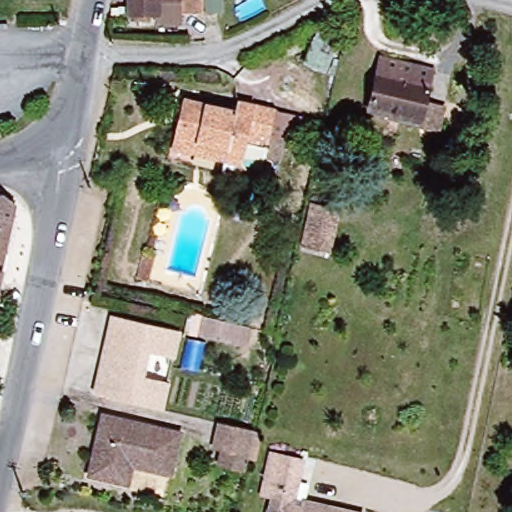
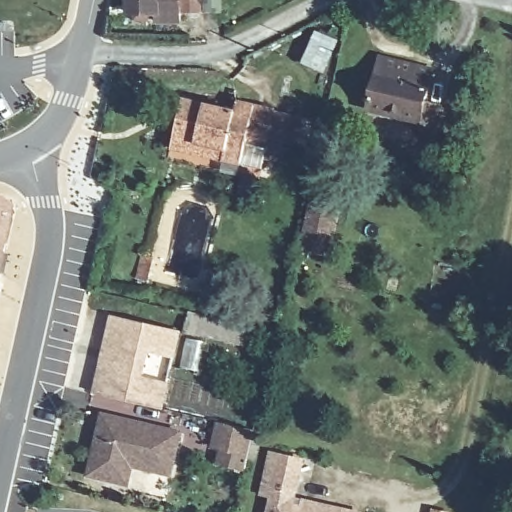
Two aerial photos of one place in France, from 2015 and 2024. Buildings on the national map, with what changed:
unchanged [(130,0),(224,0),(224,9),(183,9),(182,21),(155,22),(153,18),(134,19),(130,10),(130,0)]
unchanged [(319,32),(340,43),(326,69),(304,62),(319,32)]
unchanged [(437,127),(419,123),(367,111),(380,59),(416,68),(431,71),(428,86),(424,105),(441,109),(437,127)]
unchanged [(178,119),(182,101),(234,113),(236,103),(276,112),(301,118),(295,147),(269,141),(262,171),(223,162),(224,157),(172,145),(178,119)]
unchanged [(2,194),(15,205),(0,273),(0,194),(2,194)]
unchanged [(311,201),(345,208),(333,251),(302,244),(311,201)]
unchanged [(145,283),(137,280),(143,256),(152,258),(145,283)]
unchanged [(203,314),(251,326),(248,345),(198,335),(203,314)]
unchanged [(111,316),(181,331),(176,357),(159,354),(154,376),(173,381),(166,409),(94,390),(111,316)]
unchanged [(119,484),(88,477),(102,417),(179,434),(170,475),(131,466),(126,485),(119,484)]
unchanged [(244,470),(218,464),(222,449),(219,448),(211,447),(217,423),(224,424),(253,431),(244,470)]
unchanged [(265,475),(270,451),(307,458),(301,482),(265,475)]
unchanged [(257,499),(262,478),(291,484),(285,512),(265,512),(267,501),(257,499)]
unchanged [(326,512),(298,512),(299,506),(326,512)]

